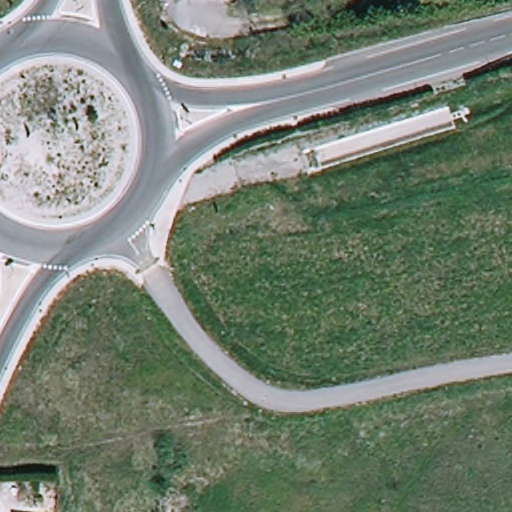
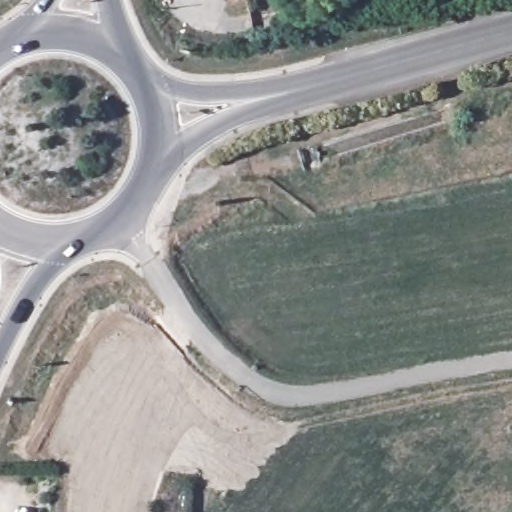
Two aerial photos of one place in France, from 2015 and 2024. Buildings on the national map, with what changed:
[]

